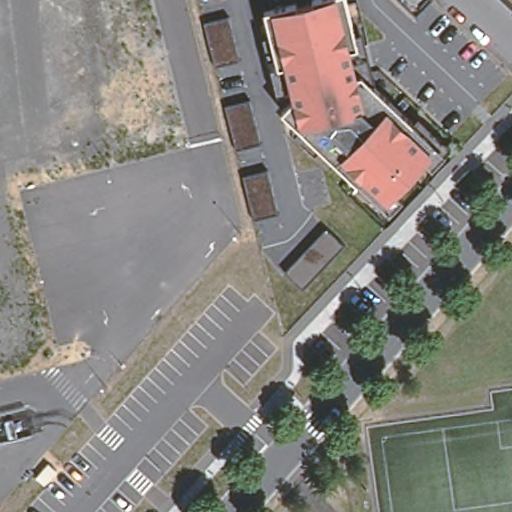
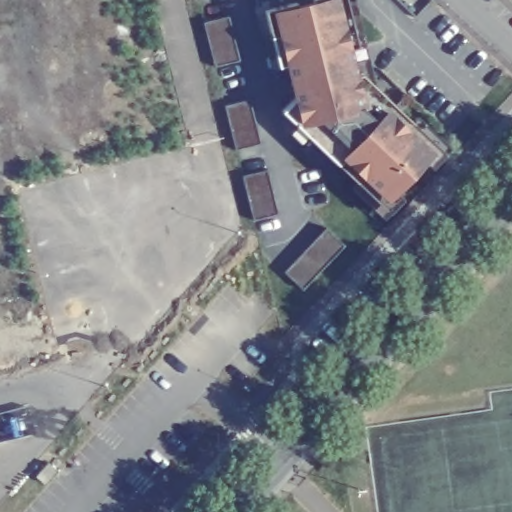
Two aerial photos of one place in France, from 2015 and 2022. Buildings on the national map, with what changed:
unchanged [(347,0),(358,47),(351,49),(357,76),(362,75),(445,154),(431,170),(424,164),(396,194),(403,200),(390,212),(282,113),(292,100),(285,65),(276,66),(265,12),(311,0),(347,0)]
unchanged [(230,17),(240,60),(214,65),(205,25),(230,17)]
unchanged [(252,100),(262,144),(236,150),(227,107),(252,100)]
unchanged [(267,170),(277,215),(252,220),(242,177),(267,170)]
unchanged [(343,247),(302,291),(285,273),(326,229),(343,247)]

